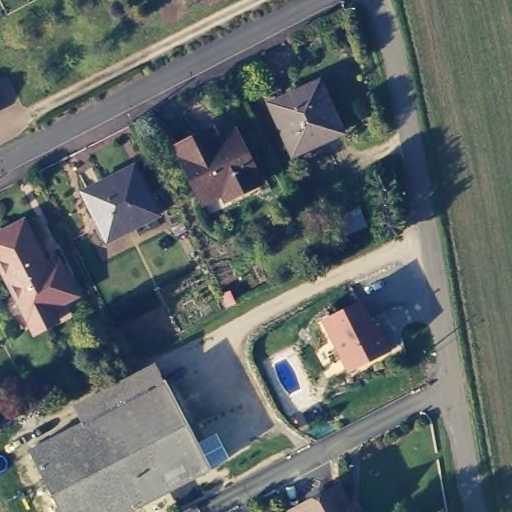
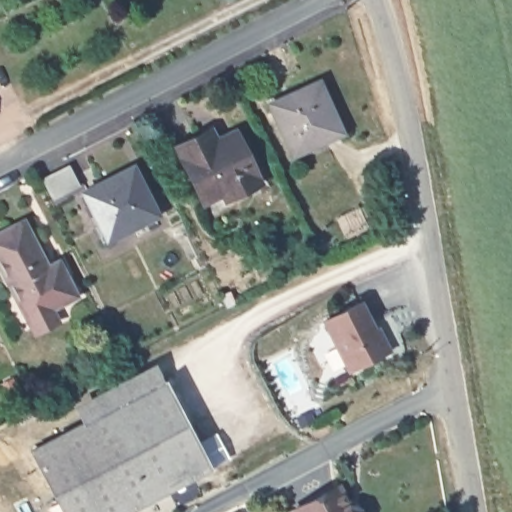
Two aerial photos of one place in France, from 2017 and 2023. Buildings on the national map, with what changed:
unchanged [(345,133),(295,156),(283,133),(270,106),(277,103),(318,81),(345,133)]
unchanged [(255,179),(220,197),(216,190),(200,198),(171,145),(191,137),(205,130),(210,139),(229,130),(255,179)]
unchanged [(103,231),(82,191),(132,166),(157,215),(133,227),(108,239),(103,231)]
unchanged [(41,269),(53,264),(67,293),(42,305),(48,318),(27,328),(20,315),(0,272),(0,231),(18,223),(41,269)]
unchanged [(390,352),(352,371),(323,319),(363,300),(390,352)]
unchanged [(211,470),(126,512),(65,512),(30,448),(164,381),(211,470)]
unchanged [(350,511),(354,512),(294,512),(338,490),(350,511)]

